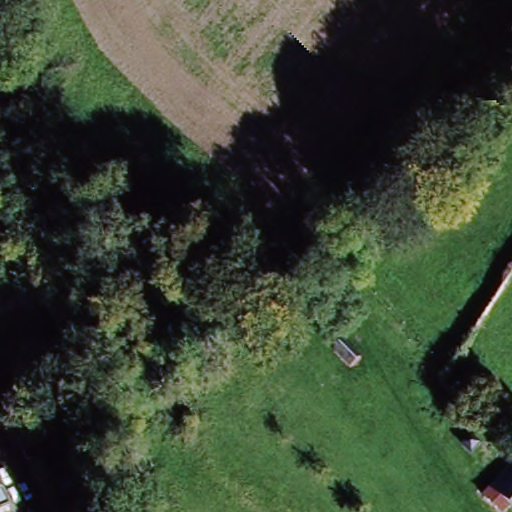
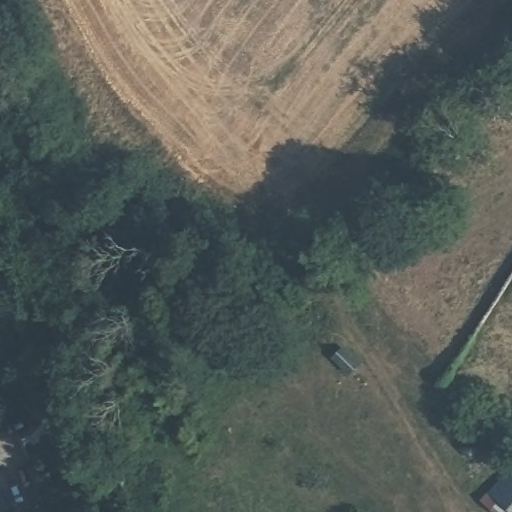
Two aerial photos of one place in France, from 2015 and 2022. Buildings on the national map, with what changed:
unchanged [(0,372),(0,368),(2,371),(0,372)]
unchanged [(52,446),(37,454),(30,458),(17,435),(8,420),(22,412),(30,428),(41,424),(52,446)]
unchanged [(77,456),(90,453),(95,475),(82,478),(77,456)]
unchanged [(509,512),(506,509),(503,512),(488,512),(475,498),(512,456),(512,512),(509,512)]
unchanged [(0,507),(0,496),(5,505),(0,507)]

